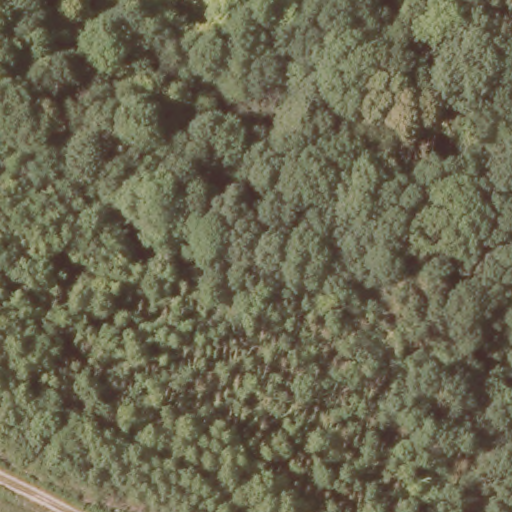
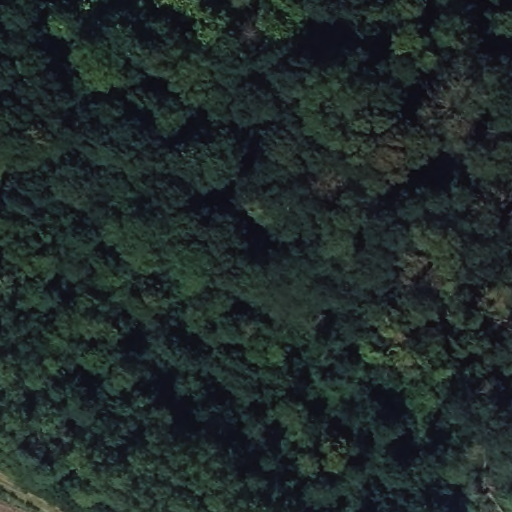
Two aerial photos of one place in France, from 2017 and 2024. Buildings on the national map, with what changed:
unchanged [(181,5),(195,15),(182,32),(169,22),(181,5)]

